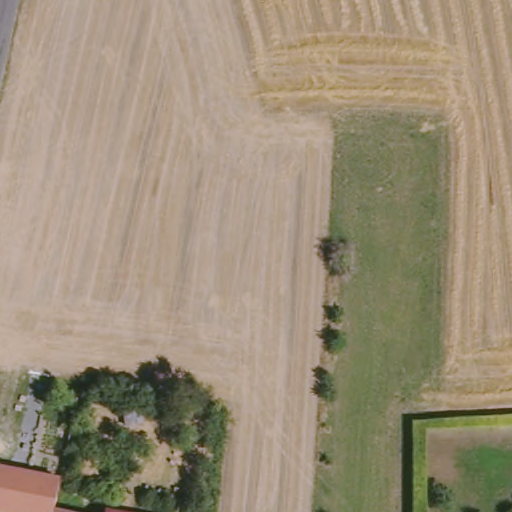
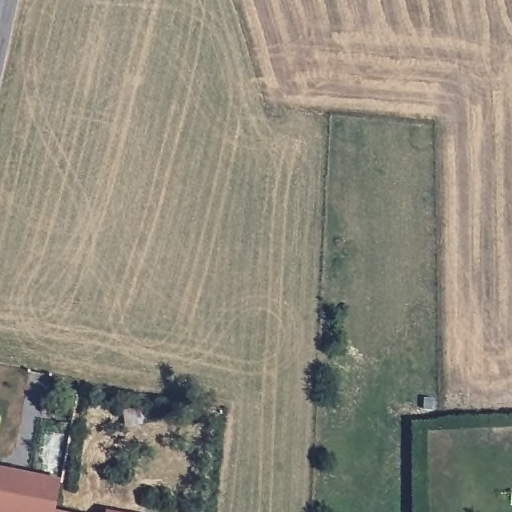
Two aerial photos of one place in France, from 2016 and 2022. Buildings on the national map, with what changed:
unchanged [(55,512),(0,512),(0,465),(61,475),(55,512)]

